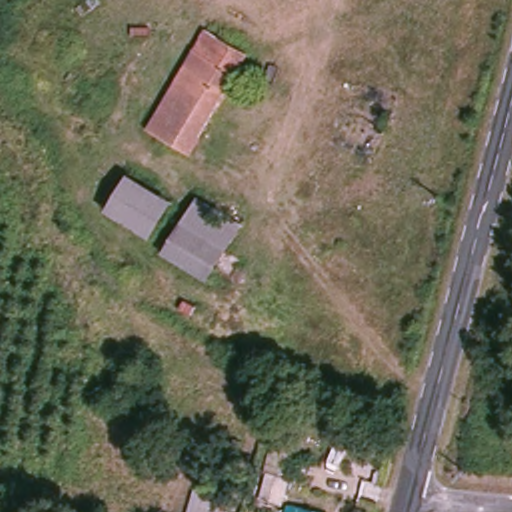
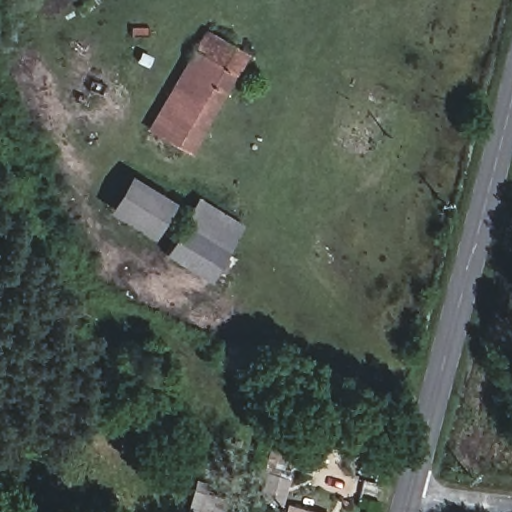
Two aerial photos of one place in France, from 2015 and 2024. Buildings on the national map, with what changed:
unchanged [(252,55),(192,158),(146,129),(162,101),(145,91),(166,58),(182,66),(205,28),(252,55)]
unchanged [(109,210),(131,175),(172,200),(152,235),(109,210)]
unchanged [(166,253),(199,199),(241,223),(211,282),(166,253)]
unchanged [(261,497),(267,475),(292,479),(285,505),(261,497)]
unchanged [(229,512),(195,512),(201,491),(212,494),(232,500),(229,512)]
unchanged [(288,504),(323,512),(286,512),(288,504)]

